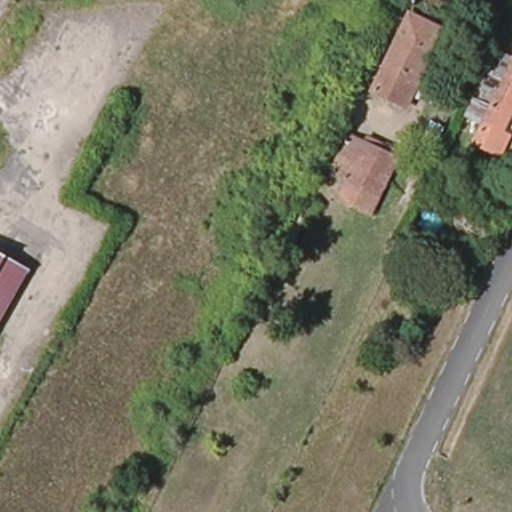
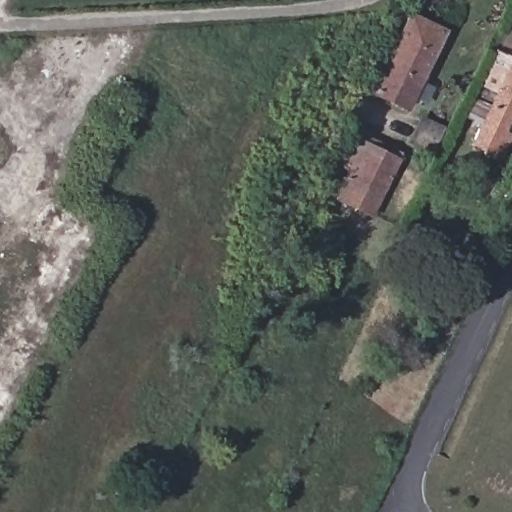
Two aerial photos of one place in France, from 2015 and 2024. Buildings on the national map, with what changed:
unchanged [(382,82),(411,20),(447,36),(416,100),(382,82)]
unchanged [(506,85),(492,79),(508,48),(512,50),(512,120),(508,127),(512,129),(512,136),(505,150),(478,137),(506,85)]
unchanged [(341,194),(367,140),(398,155),(370,210),(341,194)]
demolished [(32,273),(0,329),(0,256),(32,273)]

